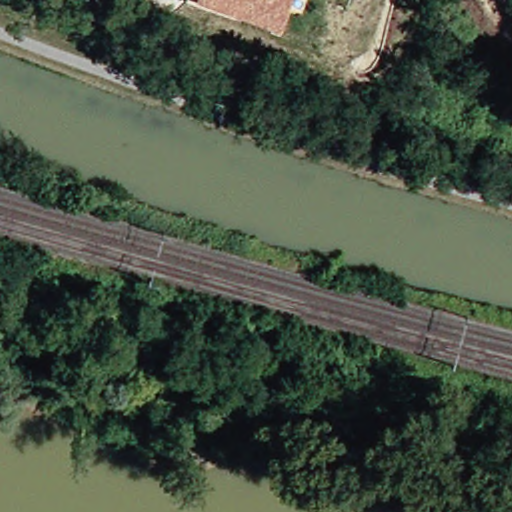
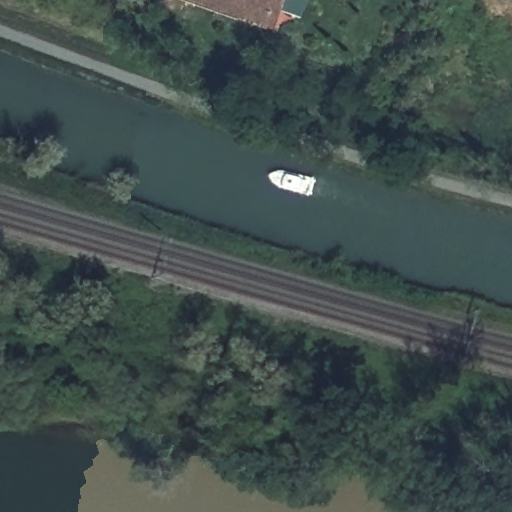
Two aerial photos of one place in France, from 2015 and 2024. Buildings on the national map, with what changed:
unchanged [(206,0),(291,0),(280,28),(206,0)]

